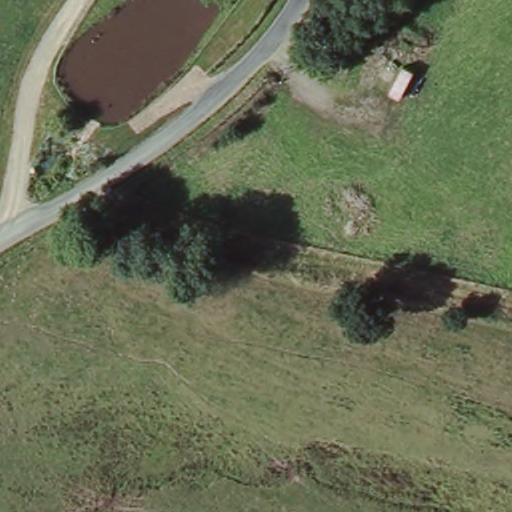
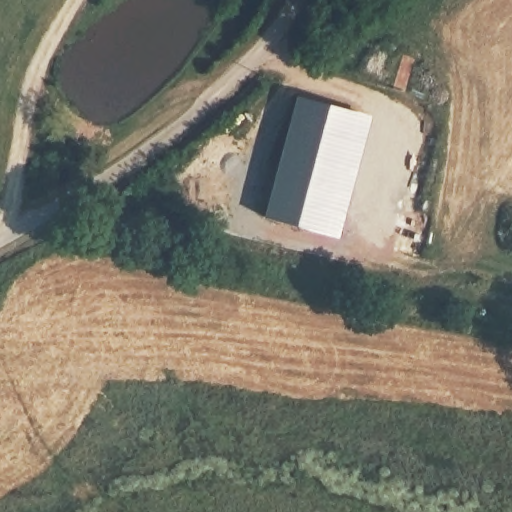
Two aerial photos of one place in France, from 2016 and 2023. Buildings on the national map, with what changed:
new [(370,116),(338,236),(265,215),(296,96),(370,116)]

